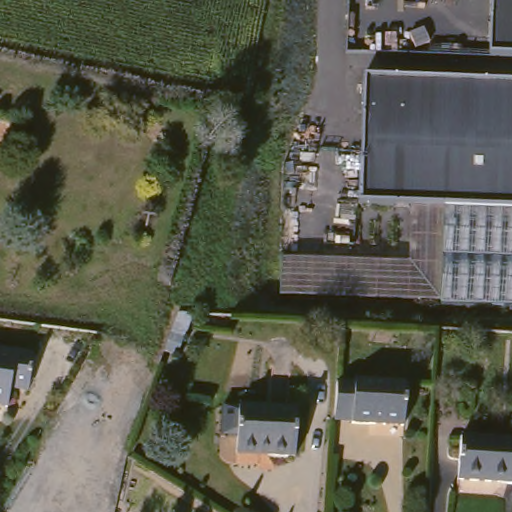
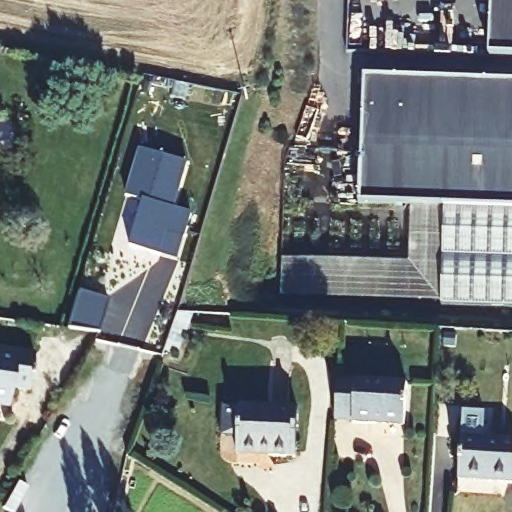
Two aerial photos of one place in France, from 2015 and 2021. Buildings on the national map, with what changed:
unchanged [(492,0),(512,0),(512,59),(490,58),(492,0)]
unchanged [(447,205),(410,204),(362,204),(365,74),(512,78),(512,207),(447,205)]
new [(137,146),(184,159),(170,205),(189,210),(182,233),(165,228),(157,252),(128,244),(140,197),(124,193),(137,146)]
unchanged [(410,258),(410,204),(447,205),(445,300),(281,292),(283,252),(410,258)]
unchanged [(512,207),(512,306),(445,305),(445,300),(447,205),(512,207)]
unchanged [(24,396),(5,393),(1,408),(0,408),(0,355),(30,362),(24,396)]
unchanged [(397,425),(344,421),(344,419),(328,417),(331,378),(346,380),(347,378),(402,382),(397,425)]
unchanged [(297,410),(291,460),(232,453),(235,434),(218,432),(221,401),(297,410)]
unchanged [(460,435),(512,438),(512,482),(456,478),(460,435)]

